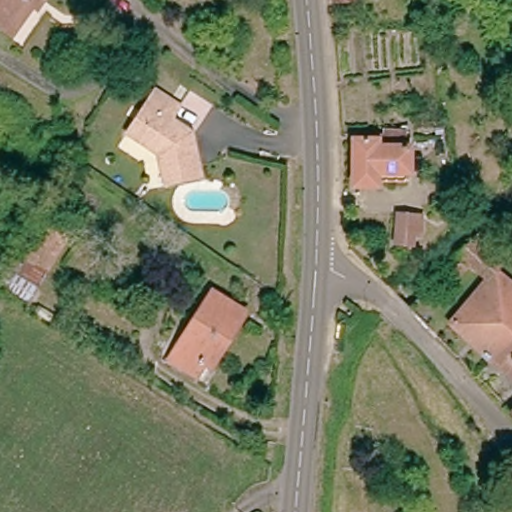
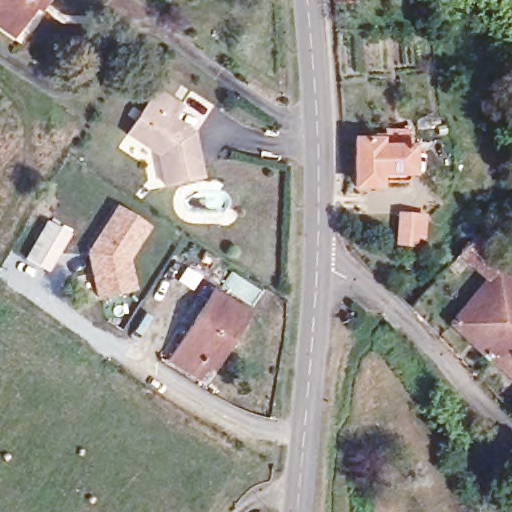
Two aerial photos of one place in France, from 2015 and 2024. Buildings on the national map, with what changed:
unchanged [(34,8),(29,5),(8,33),(0,27),(0,0),(39,0),(34,8)]
unchanged [(154,86),(179,103),(169,117),(191,132),(197,175),(156,182),(151,152),(121,132),(154,86)]
unchanged [(405,151),(407,151),(409,175),(379,178),(379,180),(359,182),(355,143),(372,141),(371,137),(384,136),(384,131),(403,129),(405,151)]
new [(149,229),(129,261),(134,291),(94,298),(85,253),(116,205),(149,229)]
unchanged [(413,237),(393,236),(394,207),(414,207),(413,237)]
unchanged [(44,222),(69,236),(47,273),(22,258),(44,222)]
unchanged [(512,276),(512,386),(488,363),(449,327),(486,285),(467,268),(454,282),(441,270),(455,256),(481,229),(488,235),(497,224),(512,238),(512,260),(505,269),(512,276)]
unchanged [(214,290),(248,311),(212,368),(205,364),(198,377),(169,358),(214,290)]
unchanged [(509,418),(512,415),(512,421),(509,418)]

